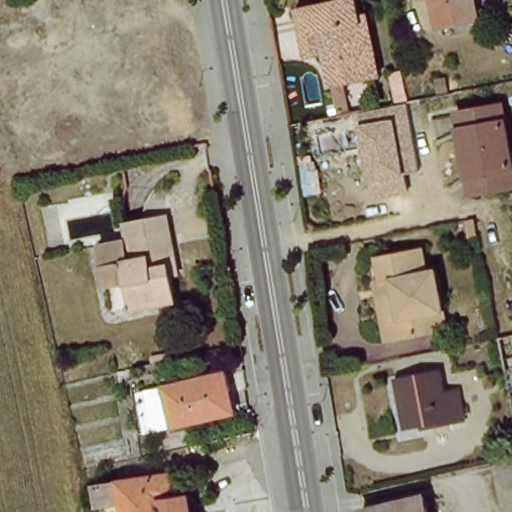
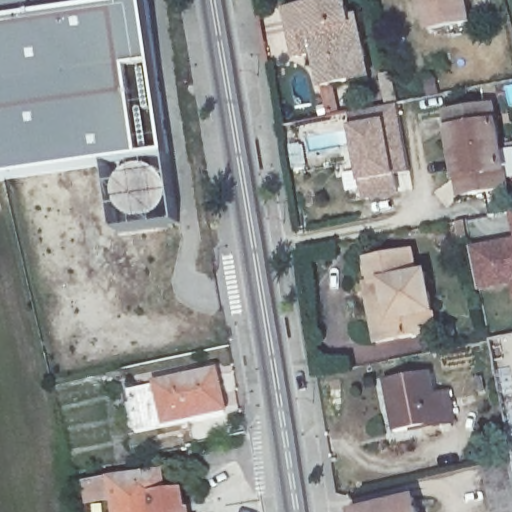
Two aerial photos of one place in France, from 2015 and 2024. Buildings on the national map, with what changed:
new [(119,234),(109,164),(10,178),(0,181),(0,0),(146,0),(147,4),(171,155),(181,226),(119,234)]
unchanged [(304,6),(356,0),(361,0),(372,79),(334,85),(329,52),(311,52),(304,6)]
unchanged [(427,0),(465,0),(469,21),(433,27),(427,0)]
new [(400,196),(369,202),(357,132),(354,117),(359,116),(401,109),(414,176),(413,176),(397,179),(400,196)]
unchanged [(497,112),(504,150),(511,192),(466,200),(459,158),(452,120),(497,112)]
new [(511,212),(512,212),(512,222),(511,212)]
demolished [(156,223),(166,272),(159,274),(166,307),(122,315),(113,271),(120,269),(113,232),(156,223)]
new [(512,239),(512,285),(482,292),(472,247),(512,239)]
unchanged [(419,333),(383,341),(374,303),(382,302),(379,283),(369,285),(364,262),(411,254),(416,275),(422,273),(429,312),(433,331),(419,333)]
unchanged [(386,382),(431,372),(437,396),(450,392),(457,422),(397,436),(386,382)]
unchanged [(221,380),(229,419),(144,437),(136,398),(221,380)]
new [(512,462),(512,512),(493,512),(484,468),(512,462)]
demolished [(512,468),(512,512),(479,512),(471,472),(512,468)]
unchanged [(186,490),(191,512),(84,512),(79,491),(168,475),(186,490)]
unchanged [(419,512),(362,512),(416,498),(419,512)]

